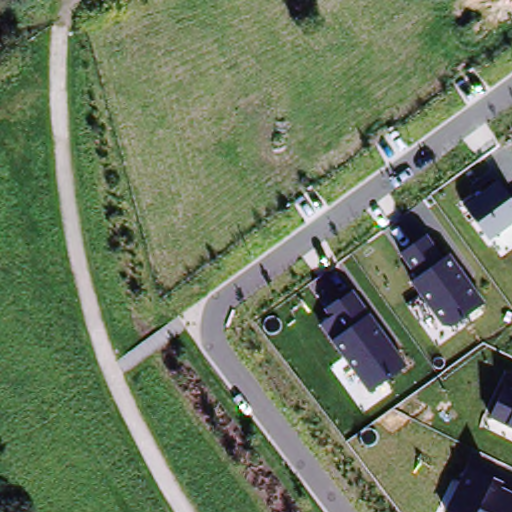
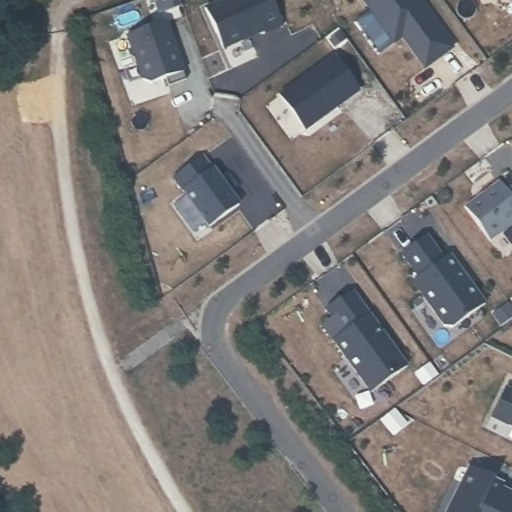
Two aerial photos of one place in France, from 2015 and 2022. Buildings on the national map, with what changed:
new [(224,0),(270,0),(281,26),(264,33),(262,28),(247,34),(248,37),(223,48),(204,9),(224,0)]
new [(451,48),(424,68),(402,37),(393,43),(361,0),(416,0),(451,48)]
unchanged [(484,1),(483,0),(486,0),(484,1)]
new [(165,22),(185,79),(168,86),(165,78),(149,83),(142,80),(126,35),(165,22)]
new [(333,57),(358,91),(304,130),(279,95),(333,57)]
new [(201,158),(210,171),(212,170),(238,206),(209,227),(173,179),(201,158)]
unchanged [(501,179),(512,196),(512,226),(488,243),(463,205),(501,179)]
unchanged [(445,258),(451,253),(486,303),(452,329),(441,327),(410,281),(416,277),(399,252),(428,232),(445,258)]
unchanged [(408,365),(369,394),(319,324),(329,317),(324,309),(354,289),(408,365)]
unchanged [(489,417),(506,382),(512,385),(512,428),(489,417)]
unchanged [(444,512),(468,463),(504,481),(503,486),(512,491),(512,512),(444,512)]

